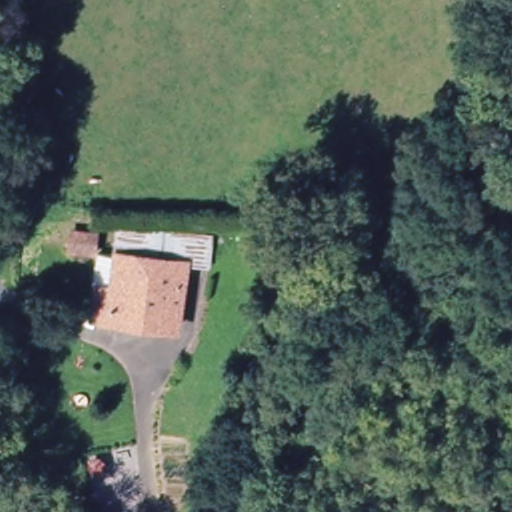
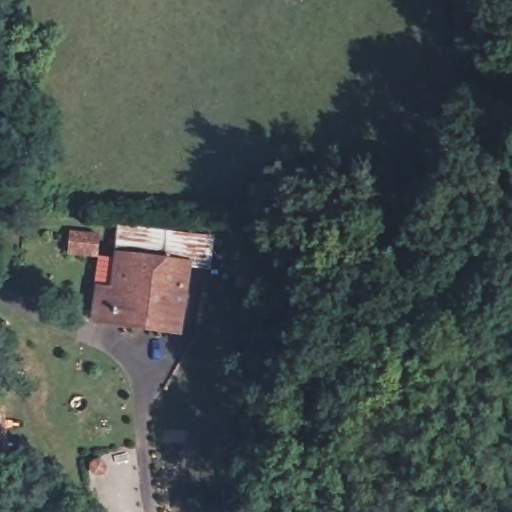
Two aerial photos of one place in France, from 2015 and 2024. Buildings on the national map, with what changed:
unchanged [(100,287),(95,286),(99,256),(120,258),(124,231),(193,240),(211,242),(207,268),(188,267),(178,332),(95,320),(100,287)]
unchanged [(72,255),(75,237),(96,240),(93,258),(72,255)]

